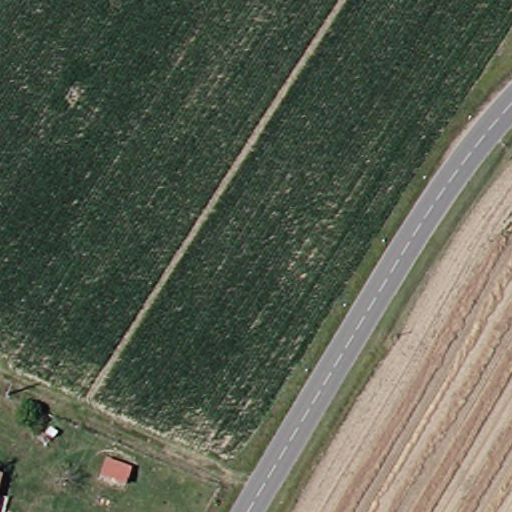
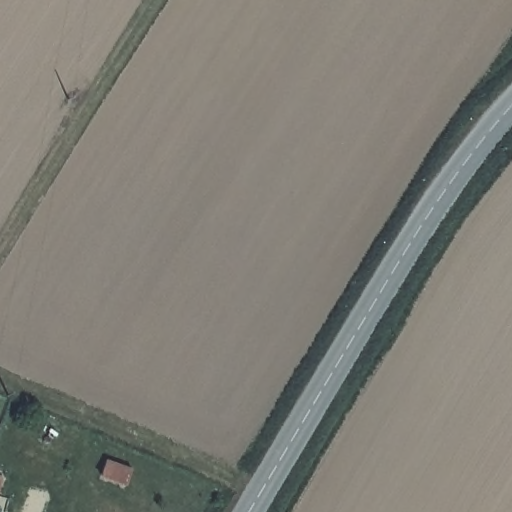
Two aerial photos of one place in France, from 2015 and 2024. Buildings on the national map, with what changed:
[]

